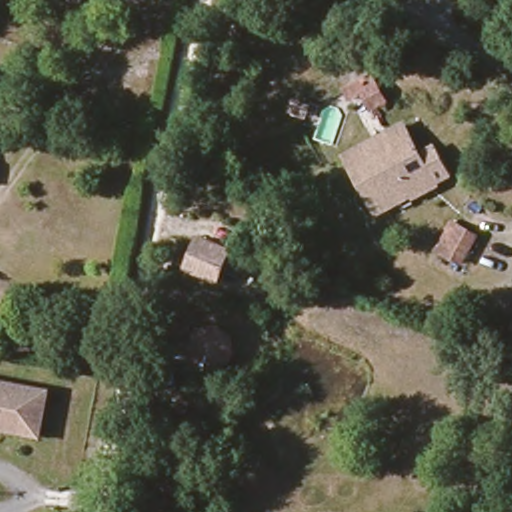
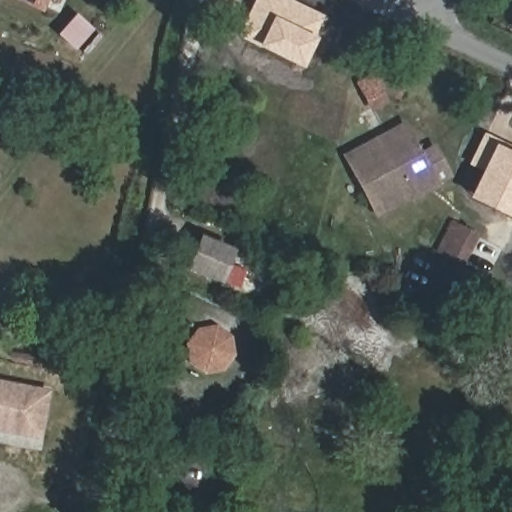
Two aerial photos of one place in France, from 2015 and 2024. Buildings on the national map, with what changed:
new [(20,0),(49,0),(43,11),(20,0)]
new [(317,37),(303,68),(258,46),(238,36),(255,0),(291,0),(323,16),(314,36),(317,37)]
unchanged [(369,113),(359,96),(349,103),(342,87),(372,71),(390,102),(369,113)]
unchanged [(342,158),(399,126),(405,136),(408,136),(414,148),(412,151),(416,158),(426,153),(440,179),(373,215),(362,195),(353,178),(342,158)]
new [(480,172),(467,164),(483,133),(512,146),(512,218),(468,197),(480,172)]
unchanged [(462,263),(440,250),(453,226),(476,238),(462,263)]
unchanged [(222,285),(183,269),(199,231),(236,247),(222,285)]
unchanged [(238,356),(227,370),(212,373),(196,363),(194,346),(204,332),(221,329),(235,339),(238,356)]
unchanged [(50,438),(0,429),(0,382),(59,393),(50,438)]

